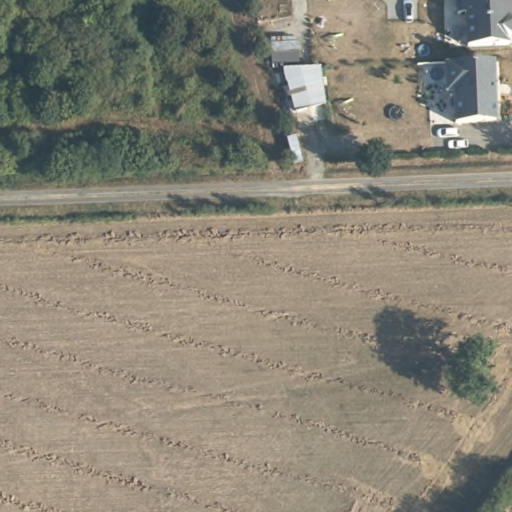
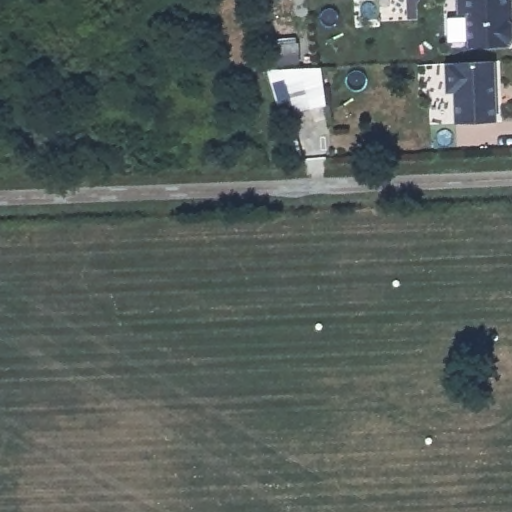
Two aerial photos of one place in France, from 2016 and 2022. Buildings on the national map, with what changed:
unchanged [(456,14),(456,0),(512,0),(512,45),(466,47),(464,13),(456,14)]
unchanged [(453,93),(445,93),(444,63),(494,63),(496,121),(454,122),(453,93)]
unchanged [(326,106),(294,114),(283,69),(321,67),(326,106)]

